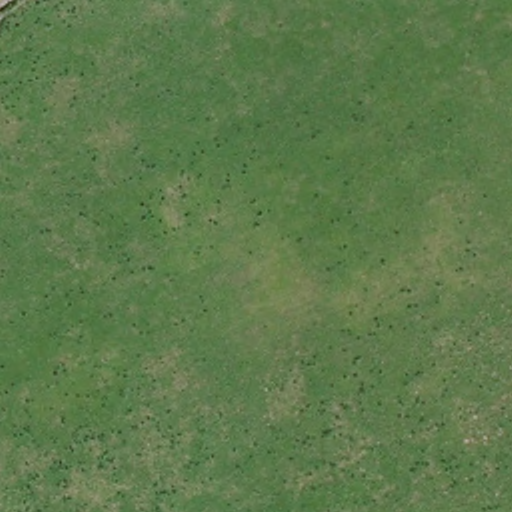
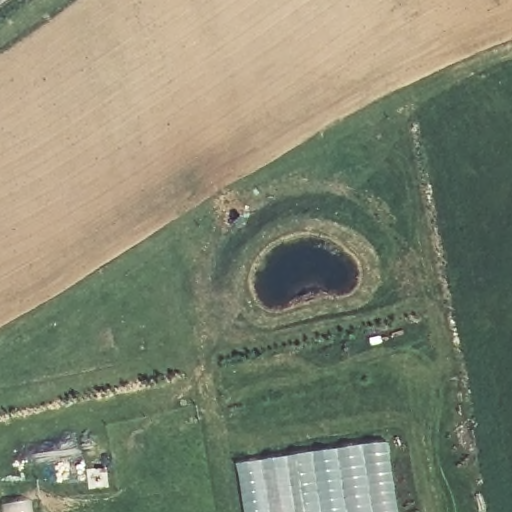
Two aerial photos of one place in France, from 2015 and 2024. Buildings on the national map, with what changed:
new [(387,442),(398,512),(245,512),(237,464),(387,442)]

